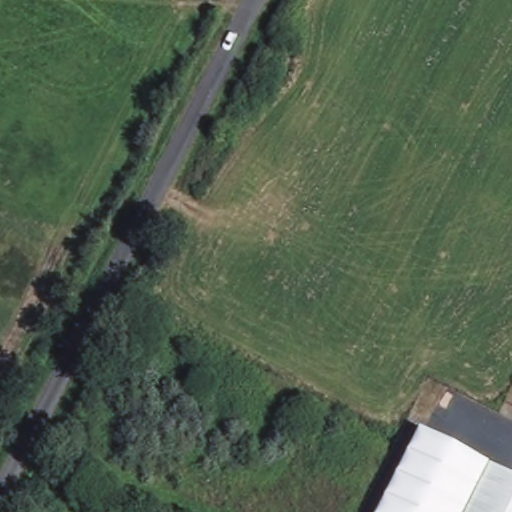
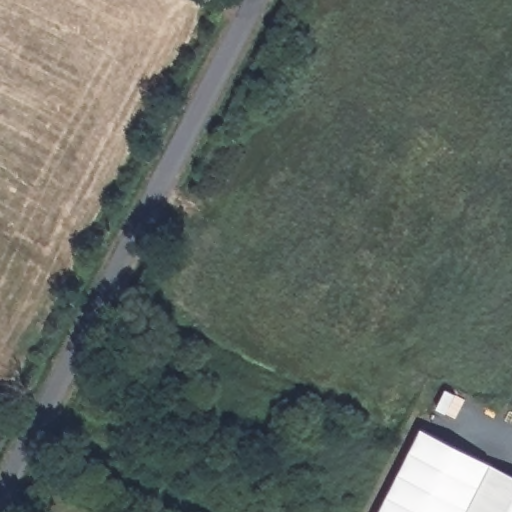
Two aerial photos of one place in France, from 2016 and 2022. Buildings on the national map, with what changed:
unchanged [(512,481),(512,512),(374,512),(414,433),(512,481)]

